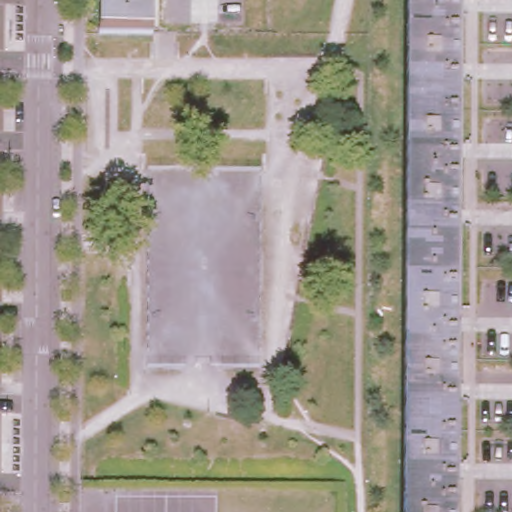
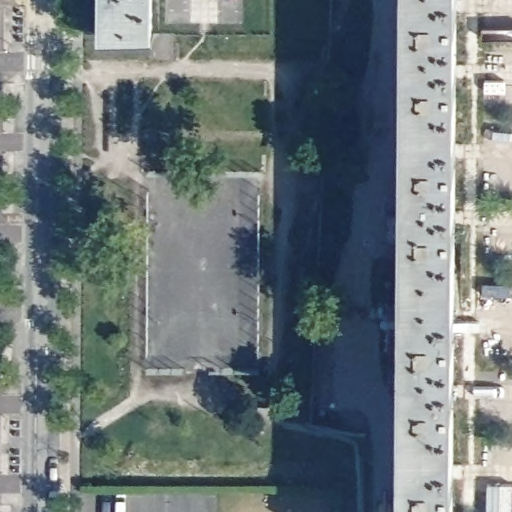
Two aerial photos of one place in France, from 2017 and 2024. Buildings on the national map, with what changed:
unchanged [(152,30),(152,34),(97,34),(97,30),(100,30),(100,0),(148,0),(148,30),(152,30)]
unchanged [(410,0),(458,0),(453,512),(404,512),(410,0)]

